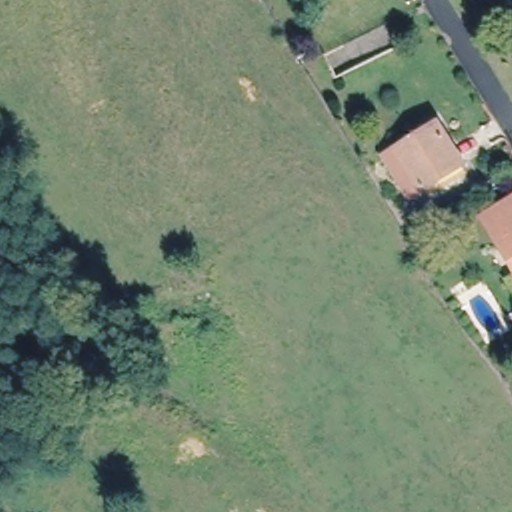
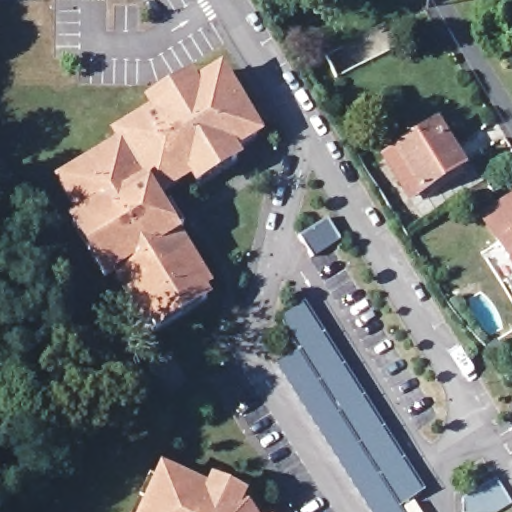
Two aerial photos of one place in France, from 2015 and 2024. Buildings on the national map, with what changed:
new [(151,319),(146,322),(119,279),(111,284),(78,231),(87,226),(65,190),(60,182),(121,144),(116,136),(142,120),(155,112),(150,104),(190,79),(195,88),(221,72),(253,124),(258,133),(232,149),(237,157),(197,182),(192,173),(181,180),(153,197),(161,210),(207,285),(201,289),(206,297),(156,328),(151,319)]
unchanged [(381,154),(392,147),(432,122),(457,160),(417,185),(404,194),(381,154)]
unchanged [(482,219),(512,201),(512,265),(482,219)]
new [(328,218),(341,239),(312,257),(299,237),(328,218)]
new [(301,305),(421,494),(399,508),(298,349),(279,318),(301,305)]
new [(399,508),(402,512),(372,512),(277,363),(298,349),(399,508)]
new [(157,478),(166,460),(251,501),(258,512),(130,512),(149,474),(157,478)]
new [(496,479),(511,504),(497,512),(462,512),(462,499),(496,479)]

